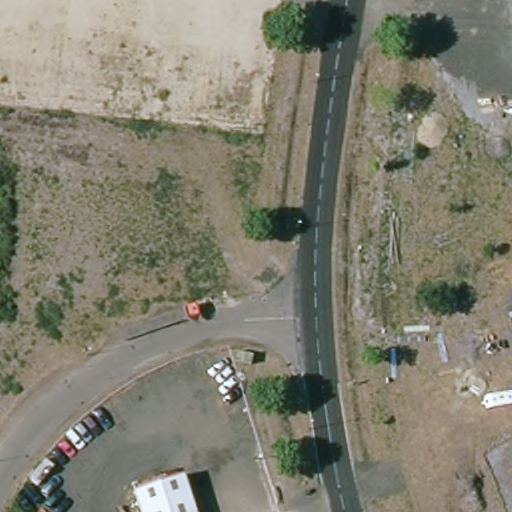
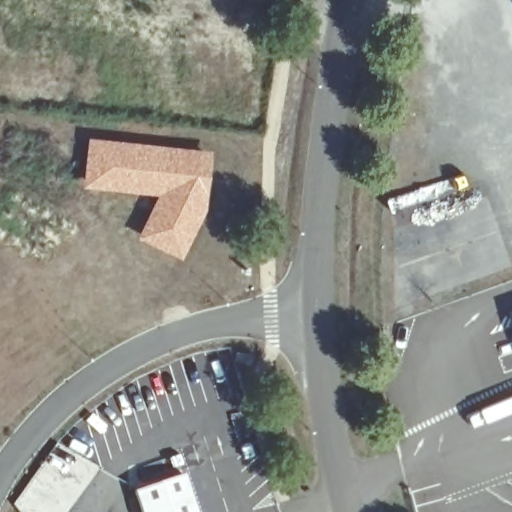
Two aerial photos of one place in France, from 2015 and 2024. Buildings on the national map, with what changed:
new [(160,196),(85,189),(89,140),(211,152),(206,210),(182,260),(139,240),(160,196)]
unchanged [(252,358),(251,363),(234,360),(236,351),(251,354),(253,355),(252,358)]
demolished [(270,365),(269,370),(252,366),(254,357),(269,360),(271,361),(270,365)]
unchanged [(185,473),(197,512),(143,512),(135,487),(184,472),(185,473)]

